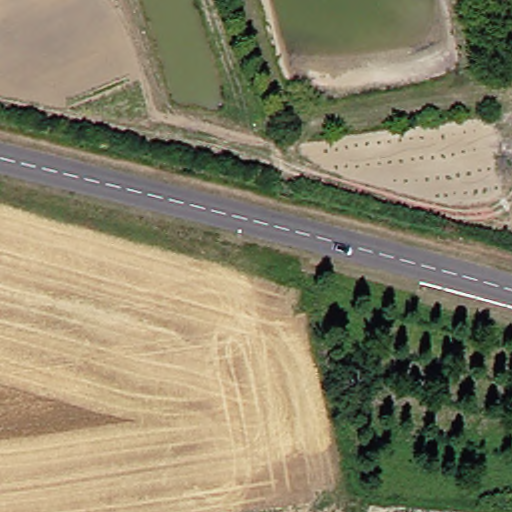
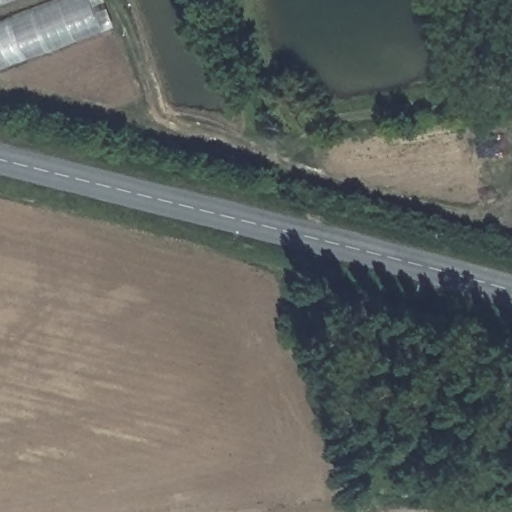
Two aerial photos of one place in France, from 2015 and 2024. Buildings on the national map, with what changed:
new [(0,0),(17,0),(0,6),(0,0)]
new [(112,26),(0,68),(0,20),(52,0),(103,0),(112,26)]

